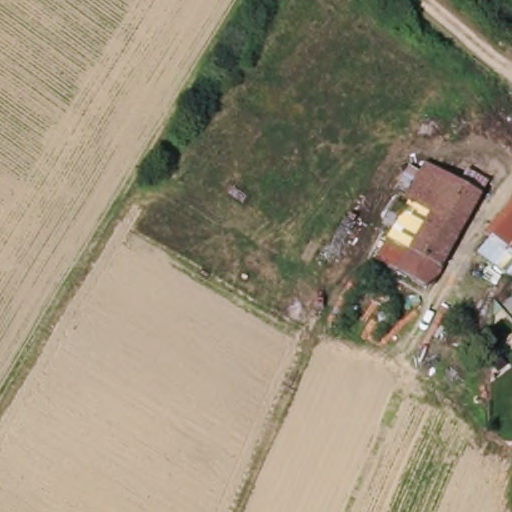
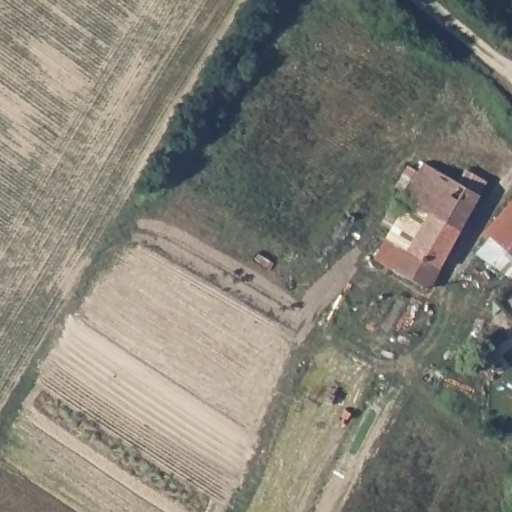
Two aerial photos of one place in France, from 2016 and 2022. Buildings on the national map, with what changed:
unchanged [(370,258),(394,218),(383,212),(394,193),(399,196),(404,186),(395,181),(404,166),(414,172),(419,162),(454,182),(461,170),(483,182),(476,195),(424,288),(370,258)]
unchanged [(472,248),(512,203),(512,266),(507,272),(472,248)]

